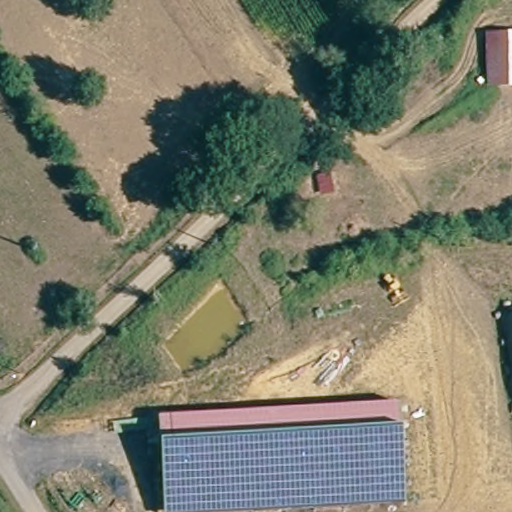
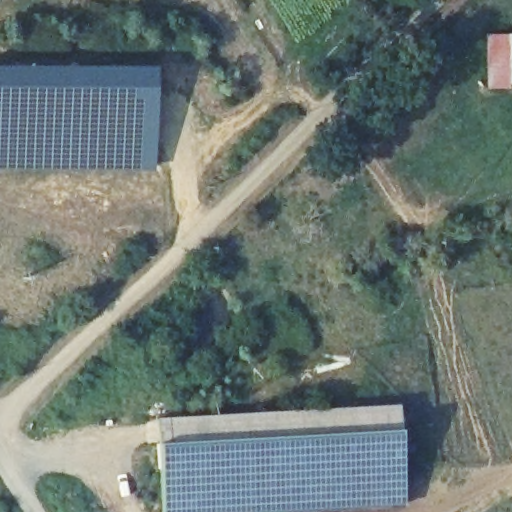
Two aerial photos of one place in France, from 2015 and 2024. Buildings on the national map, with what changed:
unchanged [(492,37),(493,37),(512,37),(512,87),(493,87),(492,37)]
new [(154,65),(156,171),(104,170),(60,172),(0,170),(0,65),(70,64),(154,65)]
unchanged [(398,429),(402,505),(279,512),(163,512),(159,442),(157,417),(397,404),(398,429)]

